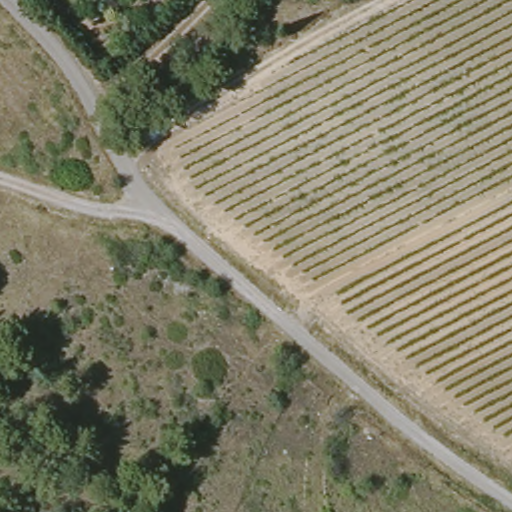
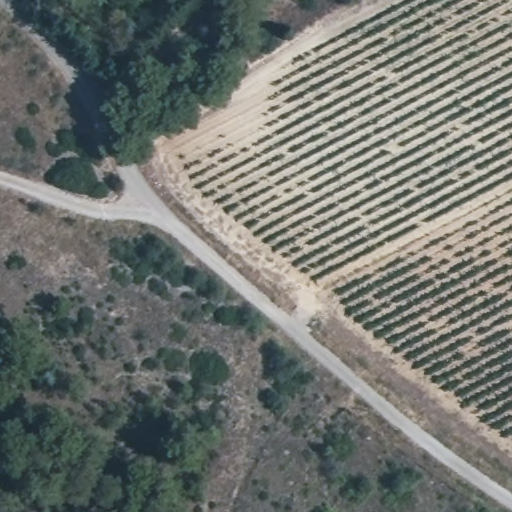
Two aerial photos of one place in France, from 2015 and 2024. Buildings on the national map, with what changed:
[]

